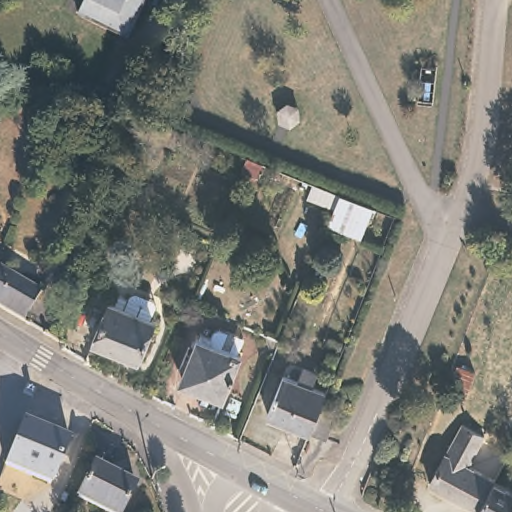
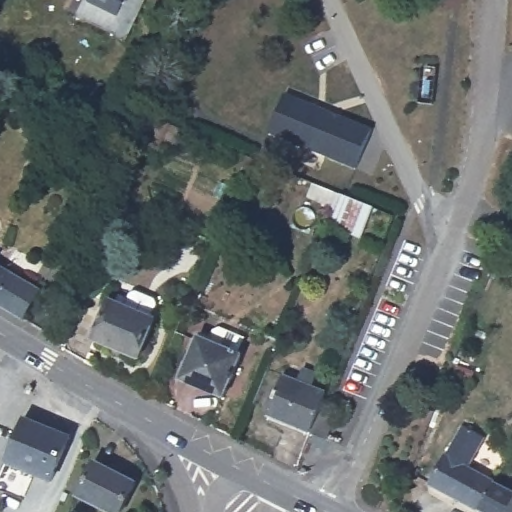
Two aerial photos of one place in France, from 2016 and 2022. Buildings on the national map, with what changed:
unchanged [(140,11),(136,10),(133,17),(136,19),(129,35),(81,12),(86,0),(145,0),(140,11)]
new [(268,134),(285,94),(371,127),(354,169),(268,134)]
unchanged [(261,161),(255,174),(240,167),(246,155),(261,161)]
unchanged [(370,206),(358,235),(326,220),(332,204),(338,192),(351,197),(370,206)]
unchanged [(41,288),(24,318),(10,311),(0,305),(0,264),(1,265),(41,288)]
unchanged [(121,306),(124,300),(133,304),(135,300),(140,297),(155,303),(156,309),(152,320),(151,322),(155,324),(139,363),(94,343),(111,305),(120,309),(121,306)]
unchanged [(212,337),(210,341),(240,355),(222,396),(181,378),(200,337),(202,333),(212,337)]
unchanged [(316,438),(301,431),(281,422),(261,413),(278,373),(291,378),(296,366),(310,372),(305,385),(319,390),(313,402),(310,412),(325,418),(316,438)]
unchanged [(70,437),(52,482),(6,464),(25,420),(70,437)]
unchanged [(482,512),(481,511),(432,486),(451,451),(465,426),(487,438),(471,468),(497,482),(512,490),(512,512),(482,512)]
unchanged [(121,471),(119,476),(135,485),(121,512),(108,512),(78,496),(95,464),(110,471),(112,467),(121,471)]

